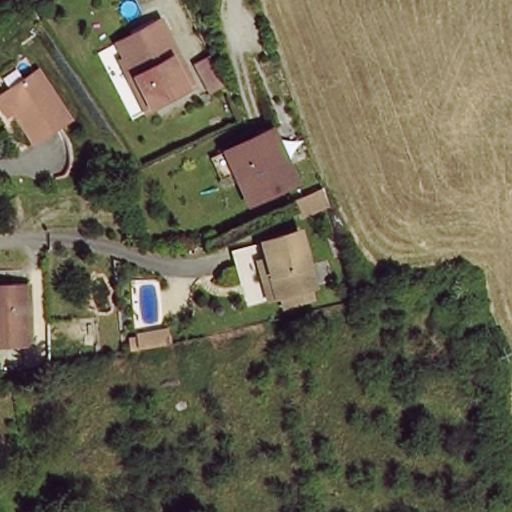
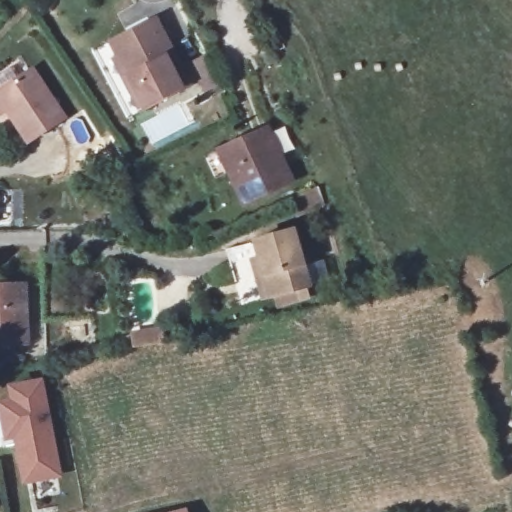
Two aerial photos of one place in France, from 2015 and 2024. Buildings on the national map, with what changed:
unchanged [(161,32),(165,31),(188,81),(144,104),(111,38),(153,16),(161,32)]
unchanged [(225,89),(211,97),(193,64),(206,55),(225,89)]
unchanged [(28,136),(0,92),(0,86),(31,66),(63,114),(28,136)]
unchanged [(290,190),(241,212),(216,158),(266,136),(290,190)]
unchanged [(274,302),(271,292),(266,293),(252,237),(290,227),(304,286),(301,286),(303,296),(274,302)]
unchanged [(27,340),(0,342),(0,283),(23,282),(27,340)]
new [(0,400),(10,398),(8,385),(44,378),(63,477),(23,483),(14,439),(5,441),(0,410),(0,400)]
new [(188,512),(172,512),(187,508),(188,512)]

